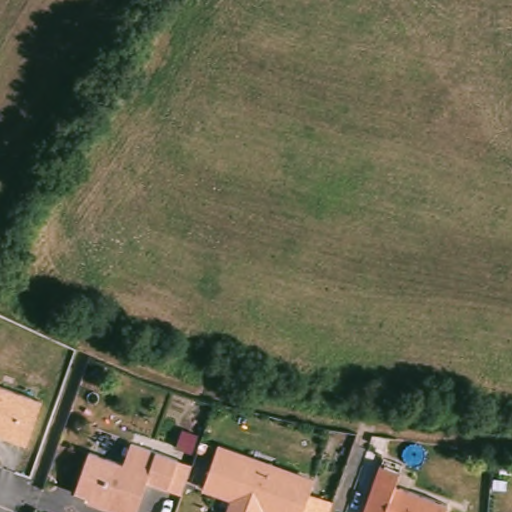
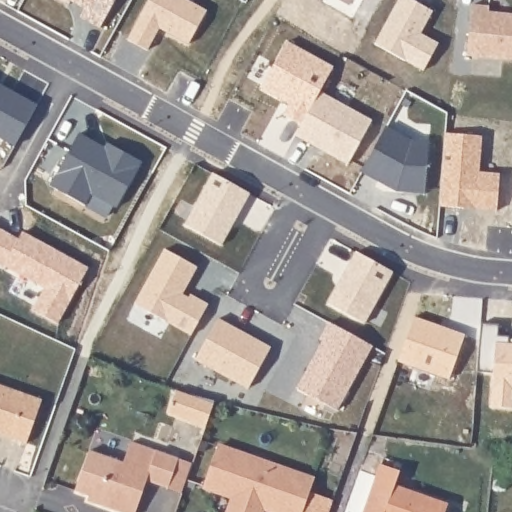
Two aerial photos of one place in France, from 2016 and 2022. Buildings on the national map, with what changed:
new [(81,18),(86,9),(72,1),(69,5),(60,0),(117,0),(101,29),(81,18)]
new [(189,0),(209,11),(190,44),(161,29),(149,51),(129,40),(151,0),(189,0)]
new [(439,43),(424,71),(374,44),(398,0),(412,0),(433,11),(421,33),(439,43)]
new [(473,5),(489,7),(489,13),(512,15),(512,60),(467,55),(473,5)]
new [(285,42),(333,67),(320,92),(302,125),(284,116),(289,105),(260,89),(285,42)]
new [(20,97),(37,106),(15,147),(0,139),(0,91),(18,101),(20,97)]
new [(302,125),(320,92),(373,121),(349,165),(330,154),(331,152),(312,142),(311,144),(296,136),(302,125)]
new [(361,172),(387,126),(412,140),(430,142),(426,194),(397,192),(381,190),(375,187),(378,182),(361,172)]
new [(444,133),(481,136),(479,172),(499,174),(497,211),(477,209),(477,205),(461,204),(461,208),(439,206),(444,133)]
new [(50,187),(79,134),(96,144),(93,150),(101,154),(108,144),(141,163),(116,208),(108,223),(84,210),(86,207),(50,187)]
new [(213,174),(250,194),(221,246),(184,225),(213,174)]
new [(34,240),(88,269),(58,325),(35,313),(48,291),(5,267),(0,265),(0,230),(5,233),(19,241),(21,237),(33,243),(34,240)]
new [(164,250),(198,268),(183,295),(189,298),(190,295),(209,305),(192,335),(134,305),(164,250)]
new [(356,252),(393,272),(364,324),(328,304),(356,252)]
new [(414,318),(465,336),(449,381),(398,363),(414,318)]
new [(218,319),(271,349),(248,389),(196,361),(218,319)]
new [(323,341),(320,340),(329,323),(373,347),(338,411),(297,389),(323,341)]
new [(481,324),(499,326),(498,337),(509,338),(509,346),(512,346),(512,410),(491,408),(493,375),(477,375),(481,324)]
unchanged [(25,442),(9,436),(9,434),(0,431),(0,385),(41,399),(25,442)]
unchanged [(89,500),(90,495),(75,490),(89,450),(124,462),(131,442),(179,458),(168,488),(147,480),(136,512),(120,512),(96,504),(88,501),(89,500)]
unchanged [(312,483),(301,512),(226,512),(229,503),(202,492),(217,448),(312,483)]
unchanged [(446,512),(364,512),(376,478),(381,464),(399,471),(394,485),(449,504),(446,512)]

